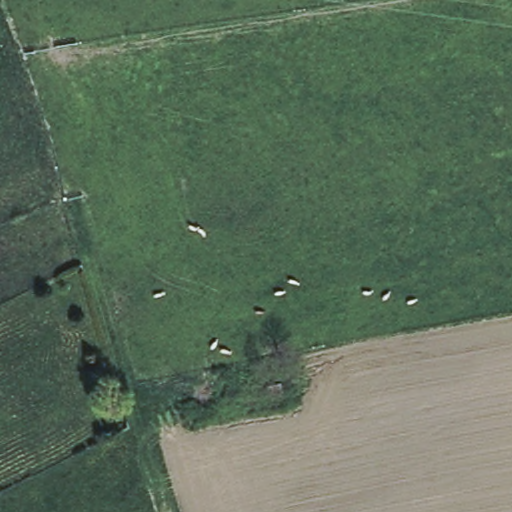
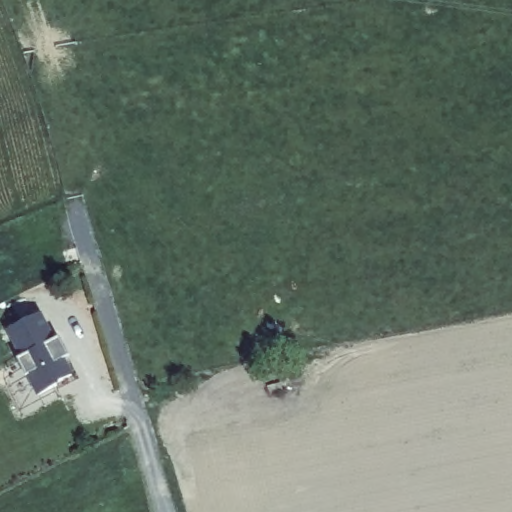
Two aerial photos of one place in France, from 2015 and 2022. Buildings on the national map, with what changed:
new [(40,314),(52,341),(58,338),(64,349),(58,352),(71,376),(54,384),(56,386),(37,395),(18,359),(21,358),(7,330),(40,314)]

